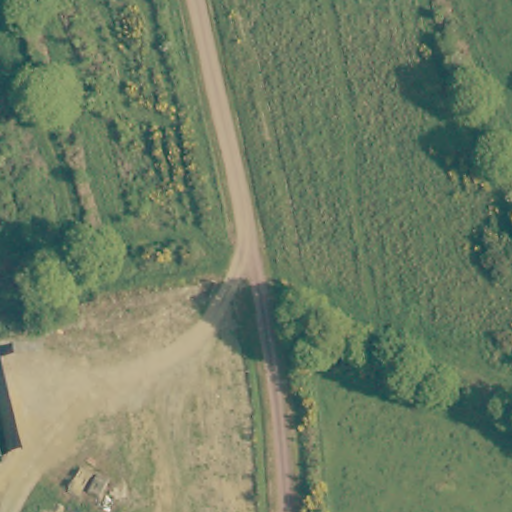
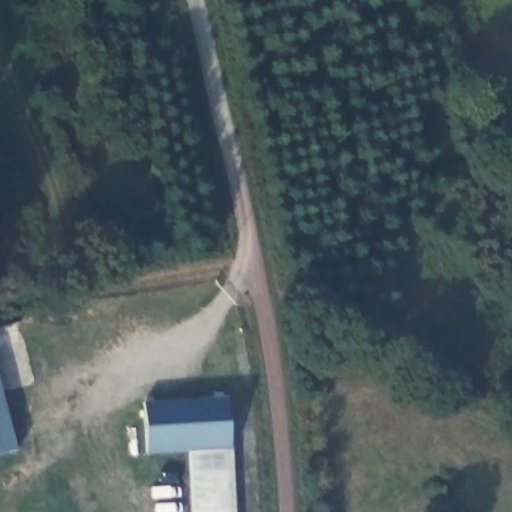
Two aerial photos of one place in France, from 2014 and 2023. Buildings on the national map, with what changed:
new [(0,456),(0,378),(19,451),(0,456)]
new [(148,454),(143,403),(229,398),(233,449),(190,452),(148,454)]
new [(233,449),(236,512),(192,512),(190,452),(233,449)]

